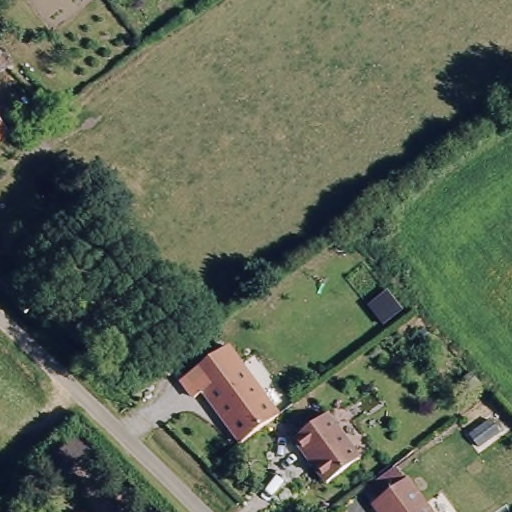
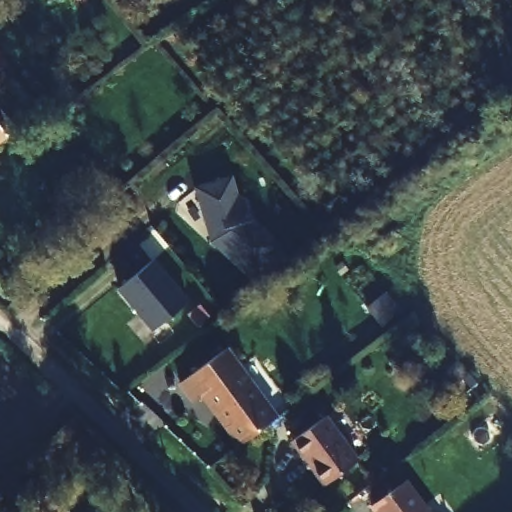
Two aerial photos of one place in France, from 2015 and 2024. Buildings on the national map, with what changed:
unchanged [(9,68),(0,76),(0,57),(9,68)]
unchanged [(3,115),(13,128),(5,133),(0,138),(0,118),(3,115)]
new [(236,174),(241,195),(247,194),(252,214),(285,244),(254,276),(213,240),(197,186),(236,174)]
new [(184,302),(150,331),(115,289),(149,260),(184,302)]
unchanged [(240,442),(202,390),(193,397),(180,380),(226,346),(277,414),(240,442)]
unchanged [(360,456),(326,481),(294,437),(327,412),(360,456)]
unchanged [(76,433),(94,450),(55,484),(40,466),(76,433)]
unchanged [(393,512),(424,489),(439,512),(393,512)]

